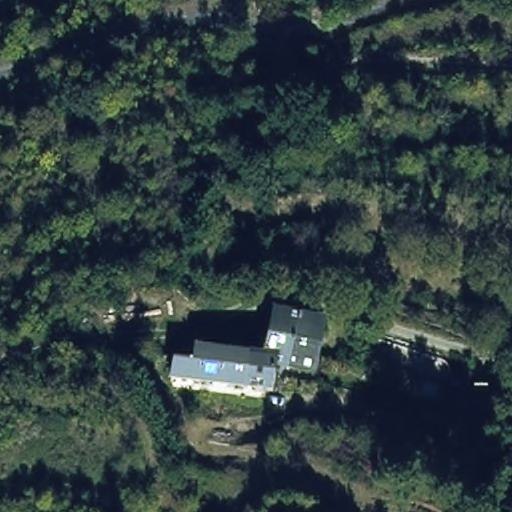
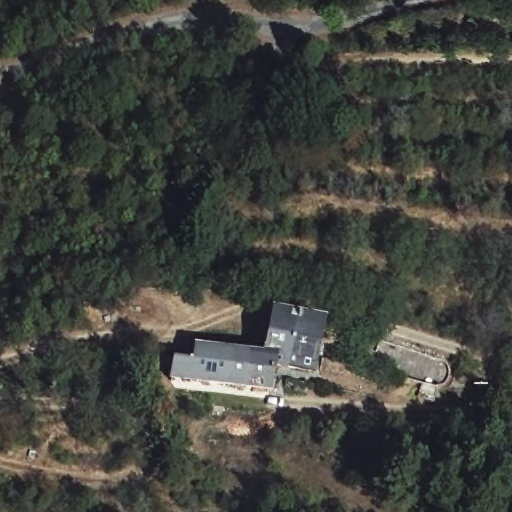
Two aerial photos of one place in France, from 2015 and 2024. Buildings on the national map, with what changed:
unchanged [(316,373),(280,365),(277,390),(167,377),(170,355),(192,358),(195,341),(262,351),(270,303),(328,316),(316,373)]

